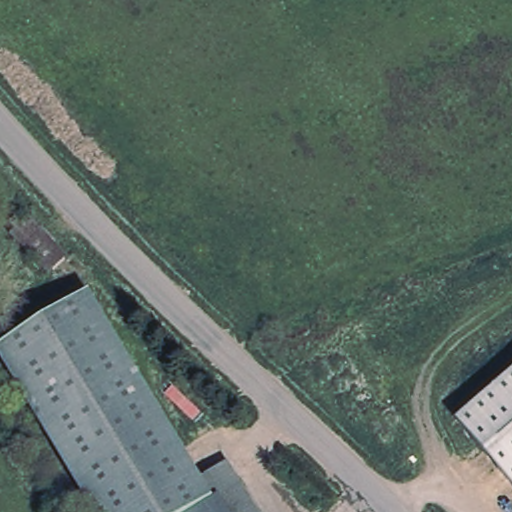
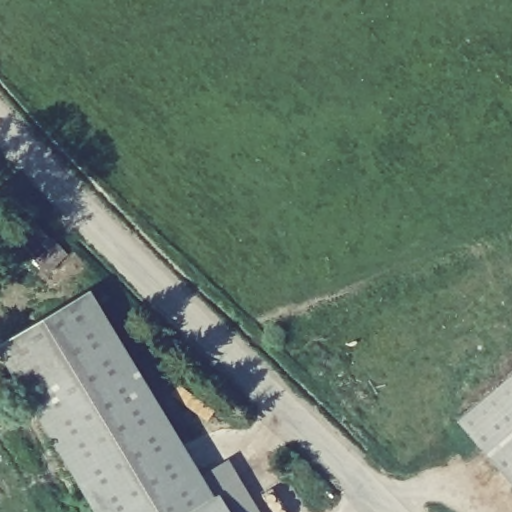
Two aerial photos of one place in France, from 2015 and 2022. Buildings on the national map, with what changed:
unchanged [(48,272),(8,232),(28,212),(66,251),(48,272)]
unchanged [(215,493),(186,512),(94,512),(0,363),(0,341),(82,290),(198,474),(202,472),(215,493)]
unchanged [(512,484),(457,420),(512,374),(512,484)]
unchanged [(202,472),(225,458),(259,512),(227,512),(215,493),(202,472)]
unchanged [(215,493),(227,512),(186,512),(215,493)]

